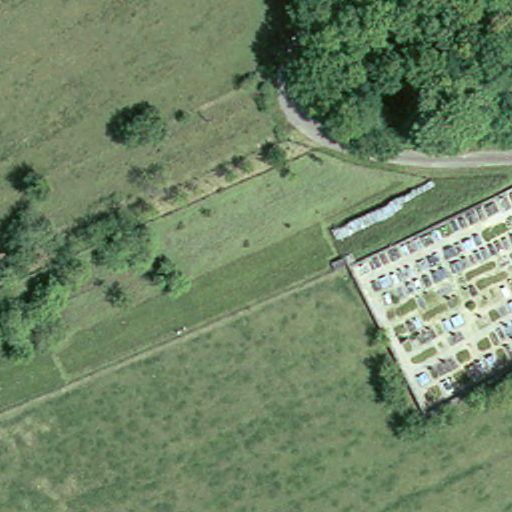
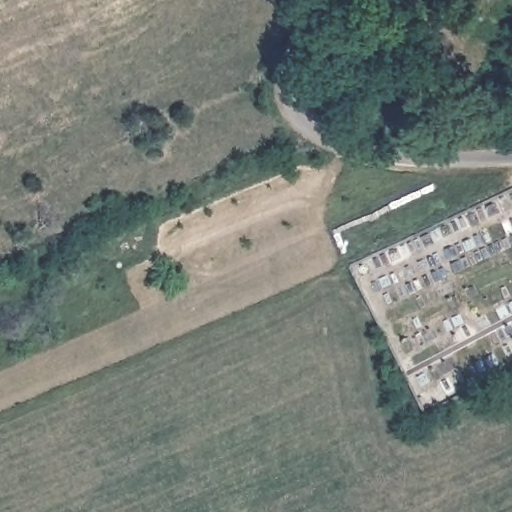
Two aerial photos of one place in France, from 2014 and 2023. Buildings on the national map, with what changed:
unchanged [(383,38),(379,29),(395,22),(393,17),(414,9),(419,21),(383,38)]

